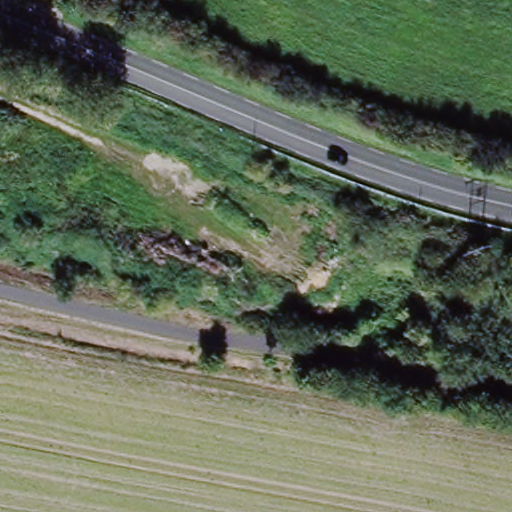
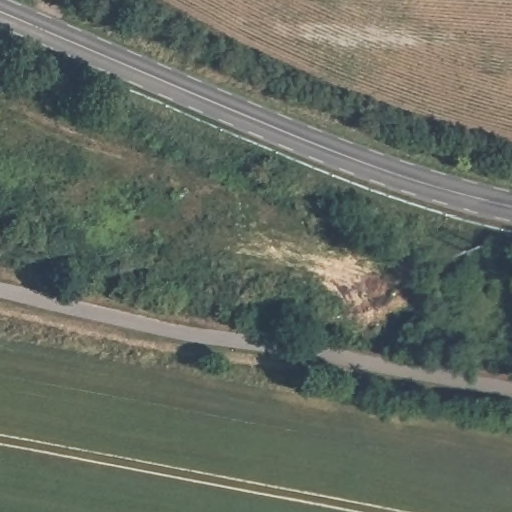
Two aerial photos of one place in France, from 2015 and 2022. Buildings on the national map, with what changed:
unchanged [(57,0),(64,0),(63,3),(57,0)]

